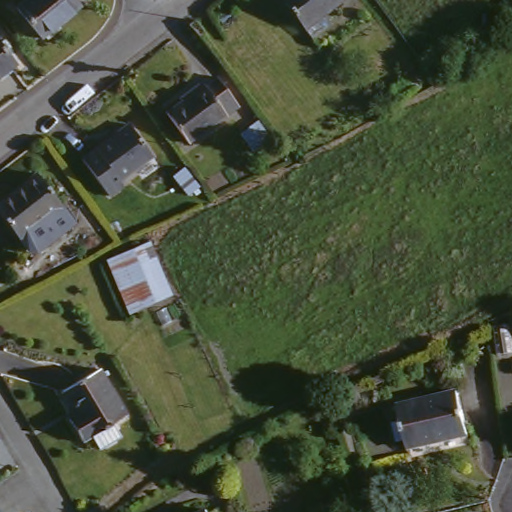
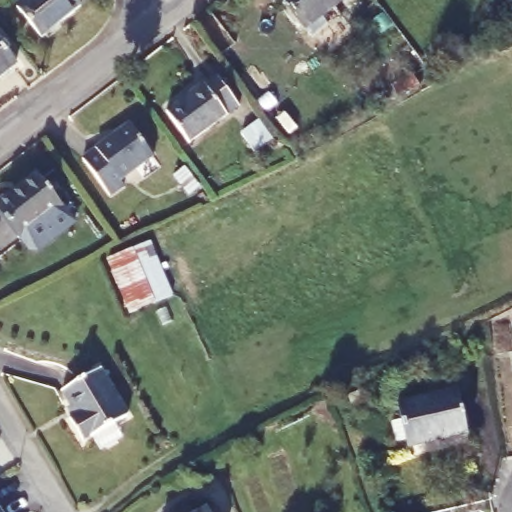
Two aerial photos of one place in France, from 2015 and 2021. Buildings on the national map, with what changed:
unchanged [(7,7),(16,0),(63,0),(69,7),(33,37),(7,7)]
unchanged [(279,0),(344,0),(303,31),(279,0)]
unchanged [(13,66),(0,75),(0,48),(13,66)]
unchanged [(197,88),(199,90),(210,81),(234,111),(182,149),(159,117),(197,88)]
unchanged [(124,129),(151,162),(118,188),(122,192),(108,203),(79,165),(124,129)]
unchanged [(174,177),(185,170),(199,188),(189,196),(174,177)]
unchanged [(13,242),(0,226),(0,201),(31,177),(54,210),(13,242)]
unchanged [(104,267),(146,246),(172,298),(130,319),(104,267)]
unchanged [(69,421),(76,417),(62,394),(101,370),(129,417),(83,445),(69,421)]
unchanged [(404,453),(401,445),(392,447),(389,440),(398,437),(391,413),(448,396),(460,436),(404,453)]
unchanged [(205,512),(200,512),(204,510),(205,512)]

